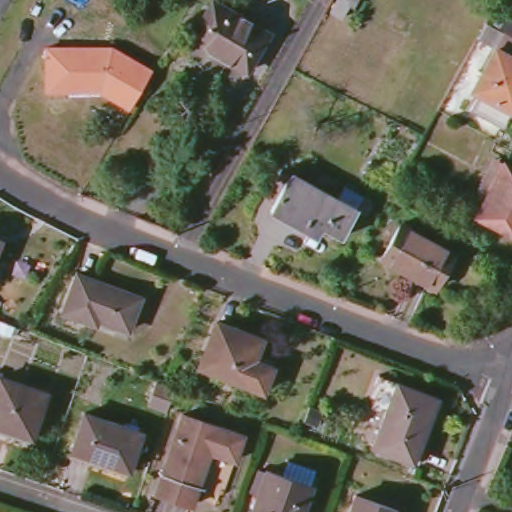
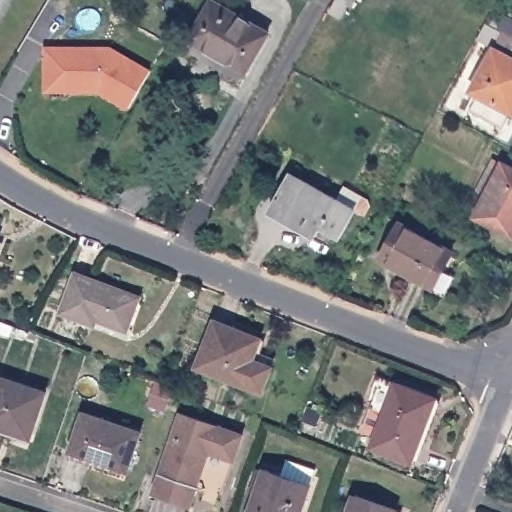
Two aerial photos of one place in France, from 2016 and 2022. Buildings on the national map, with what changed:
unchanged [(190,40),(212,0),(268,33),(245,72),(190,40)]
unchanged [(351,0),(357,0),(356,2),(351,0)]
unchanged [(478,100),(472,97),(494,55),(477,46),(487,30),(500,36),(507,24),(512,27),(512,120),(511,119),(502,133),(470,115),(478,100)]
unchanged [(112,45),(152,67),(129,110),(100,92),(44,93),(44,46),(112,45)]
unchanged [(475,217),(480,207),(471,201),(487,171),(496,175),(502,164),(512,169),(512,236),(475,217)]
unchanged [(308,235),(265,211),(285,174),(331,200),(338,187),(362,200),(364,206),(358,215),(350,210),(335,238),(313,226),(308,235)]
unchanged [(380,260),(400,222),(454,251),(433,289),(380,260)]
unchanged [(0,243),(0,239),(2,239),(0,243)]
unchanged [(98,319),(97,325),(63,313),(78,272),(141,296),(128,330),(98,319)]
unchanged [(193,367),(212,321),(258,338),(253,351),(250,359),(268,367),(258,391),(193,367)]
unchanged [(0,413),(0,374),(12,377),(0,413)]
unchanged [(0,413),(12,377),(57,393),(42,437),(0,423),(0,413)]
unchanged [(420,444),(427,446),(420,464),(373,448),(386,414),(372,409),(380,386),(375,384),(377,377),(397,384),(438,398),(420,444)]
unchanged [(73,451),(86,412),(143,431),(129,470),(73,451)]
unchanged [(152,492),(179,414),(240,434),(230,459),(205,451),(194,487),(188,504),(152,492)]
unchanged [(252,491),(258,470),(265,472),(267,469),(283,474),(288,460),(318,469),(313,484),(304,512),(252,512),(258,493),(252,491)]
unchanged [(398,509),(397,512),(351,512),(357,496),(398,509)]

